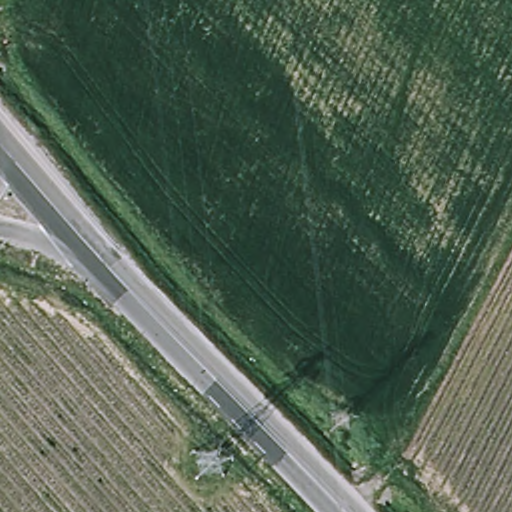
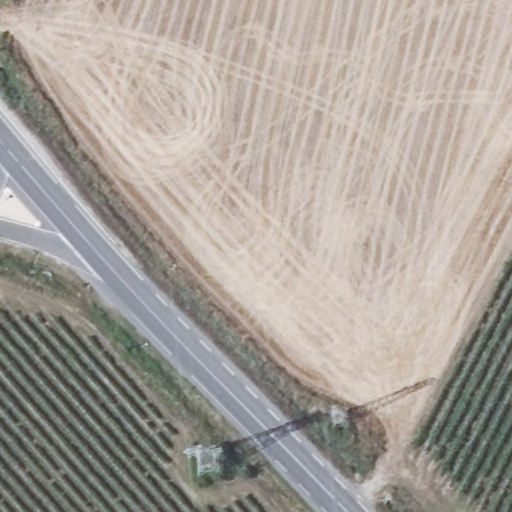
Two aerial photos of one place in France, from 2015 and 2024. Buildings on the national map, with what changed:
[]

